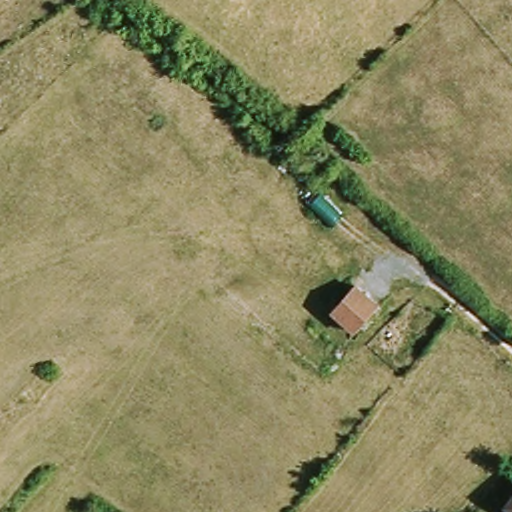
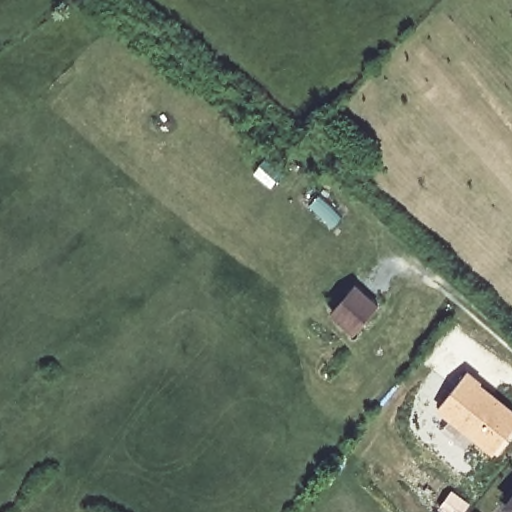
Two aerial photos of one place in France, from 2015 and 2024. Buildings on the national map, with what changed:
unchanged [(335,312),(352,293),(358,286),(382,307),(376,315),(359,332),(335,312)]
new [(512,409),(512,429),(492,452),(439,410),(470,371),(512,409)]
unchanged [(512,507),(512,512),(510,510),(512,507)]

